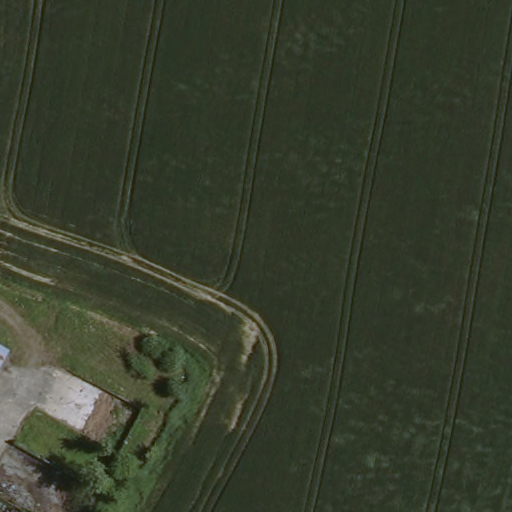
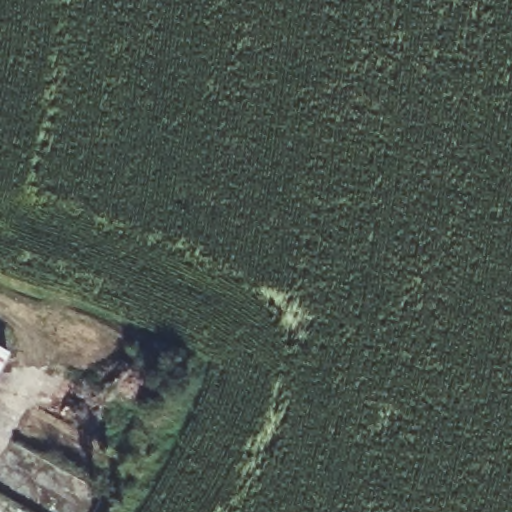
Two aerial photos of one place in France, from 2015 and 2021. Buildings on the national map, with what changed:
unchanged [(10,348),(0,365),(0,343),(10,348)]

